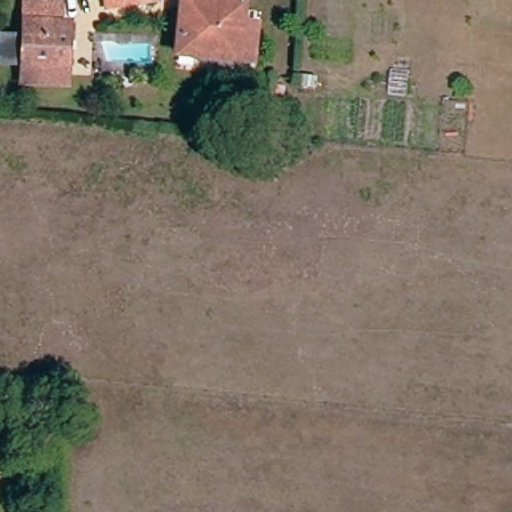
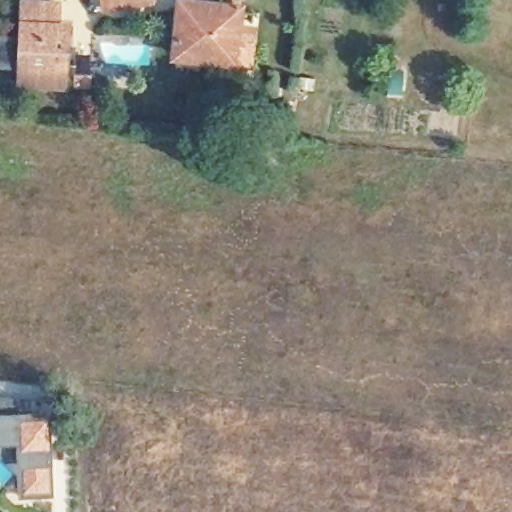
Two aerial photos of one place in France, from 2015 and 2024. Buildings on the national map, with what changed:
unchanged [(106,18),(103,0),(148,0),(147,12),(106,18)]
unchanged [(21,91),(24,45),(16,44),(18,6),(55,8),(55,28),(65,29),(62,92),(21,91)]
unchanged [(242,12),(236,67),(176,61),(182,6),(242,12)]
new [(28,423),(47,422),(51,496),(22,497),(20,475),(0,457),(0,402),(27,404),(28,423)]

